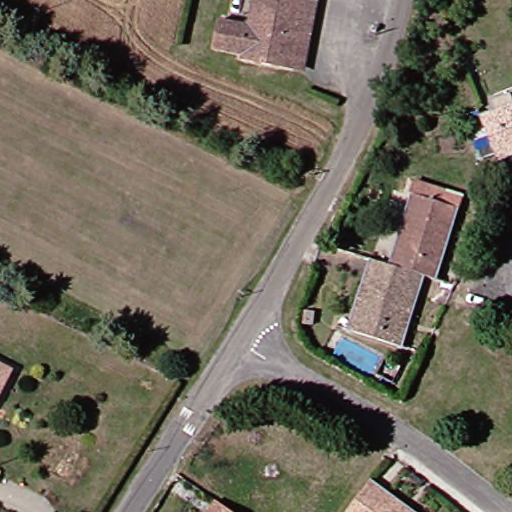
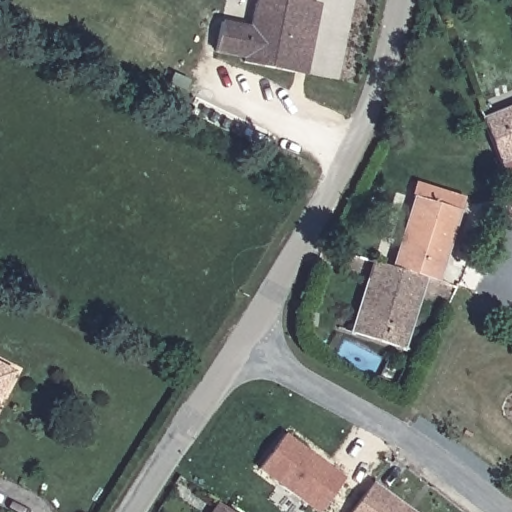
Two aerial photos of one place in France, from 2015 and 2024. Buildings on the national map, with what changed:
unchanged [(255,57),(224,51),(229,23),(262,27),(267,0),(321,0),(320,2),(307,75),(255,62),(255,57)]
unchanged [(494,116),(512,108),(512,163),(494,116)]
unchanged [(429,186),(477,200),(474,212),(451,280),(437,275),(403,263),(425,196),(429,186)]
unchanged [(419,331),(377,317),(395,261),(403,263),(437,275),(419,331)]
unchanged [(3,398),(0,403),(0,363),(26,377),(11,402),(3,398)]
new [(313,452),(310,454),(317,458),(322,457),(347,477),(322,508),(268,466),(292,435),(313,452)]
unchanged [(372,512),(390,488),(423,512),(372,512)]
new [(220,492),(232,501),(249,512),(209,512),(208,512),(220,492)]
demolished [(243,512),(239,512),(240,510),(243,512)]

